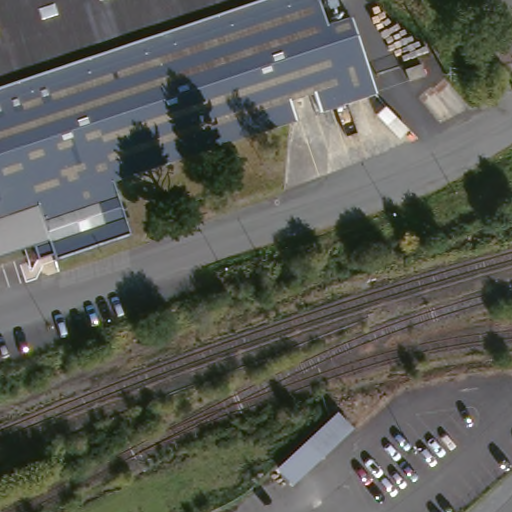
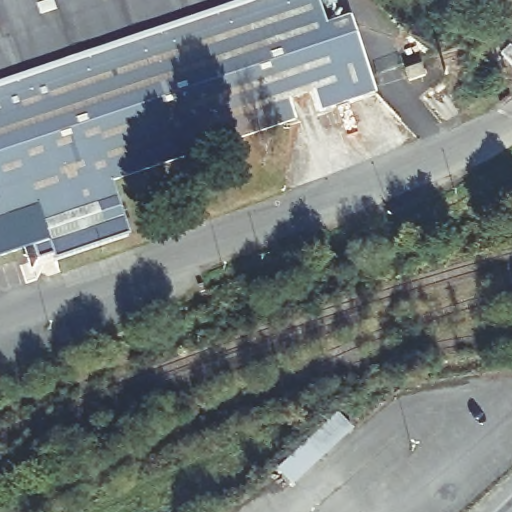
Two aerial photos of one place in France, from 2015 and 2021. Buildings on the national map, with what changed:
unchanged [(327,29),(354,20),(378,92),(115,183),(131,234),(35,267),(29,247),(0,258),(0,0),(319,0),(327,29)]
unchanged [(445,85),(427,89),(425,80),(443,75),(445,85)]
unchanged [(351,427),(293,485),(277,470),(337,413),(351,427)]

